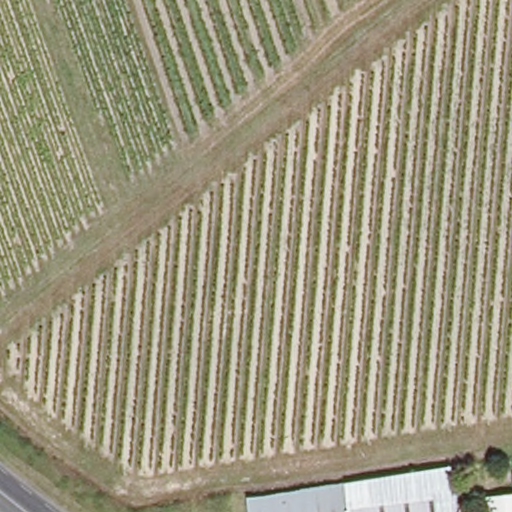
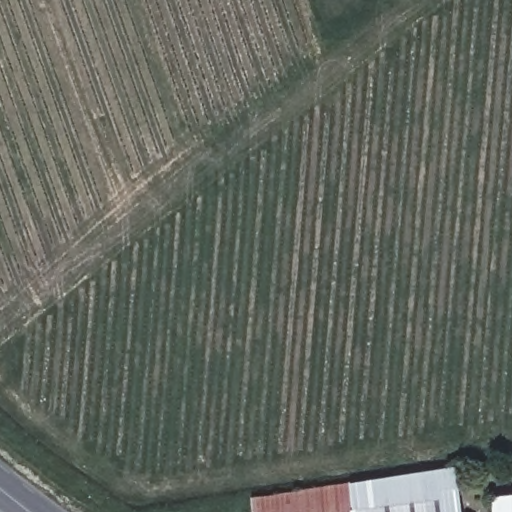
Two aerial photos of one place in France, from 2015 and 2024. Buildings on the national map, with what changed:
unchanged [(348,481),(455,463),(464,512),(253,512),(252,497),(348,481)]
unchanged [(512,490),(512,512),(494,512),(492,492),(512,490)]

